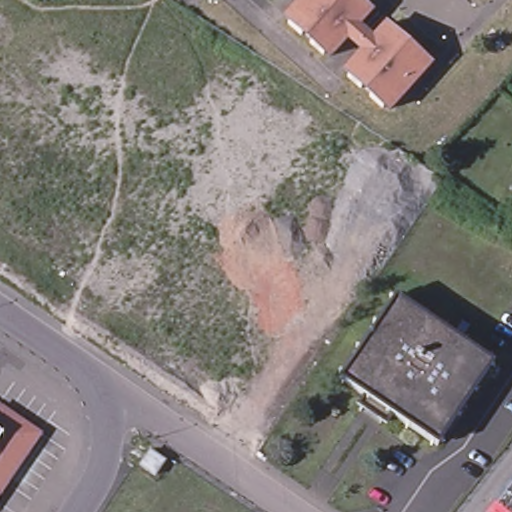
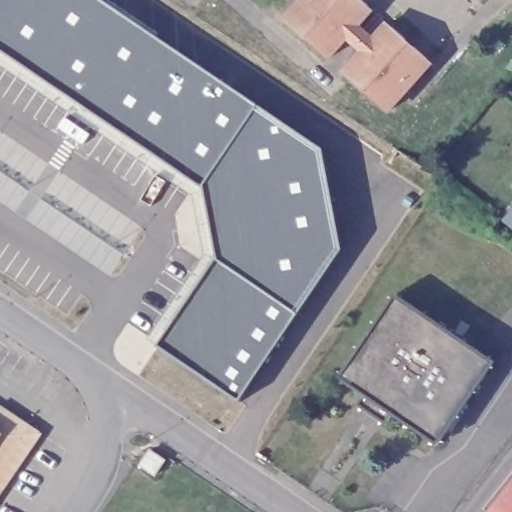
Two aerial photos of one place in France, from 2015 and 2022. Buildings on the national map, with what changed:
new [(342,247),(297,313),(240,400),(159,346),(219,254),(206,188),(0,47),(0,0),(101,0),(322,150),(342,247)]
unchanged [(331,57),(325,53),(322,56),(309,45),(312,41),(303,33),(300,36),(288,26),(291,22),(286,17),(300,0),(363,0),(367,4),(366,7),(371,12),(352,33),(366,46),(385,25),(390,30),(393,27),(397,30),(406,37),(403,41),(412,47),(414,45),(427,57),(425,59),(429,62),(430,64),(389,111),(387,109),(384,106),(381,109),(367,97),(370,94),(362,86),(359,89),(351,82),(347,78),(349,75),(344,71),(362,50),(348,37),(331,57)]
unchanged [(346,375),(395,302),(486,363),(435,437),(346,375)]
unchanged [(0,487),(0,407),(37,432),(0,487)]
unchanged [(150,452),(162,460),(154,471),(142,462),(150,452)]
new [(512,481),(512,512),(487,512),(512,481)]

